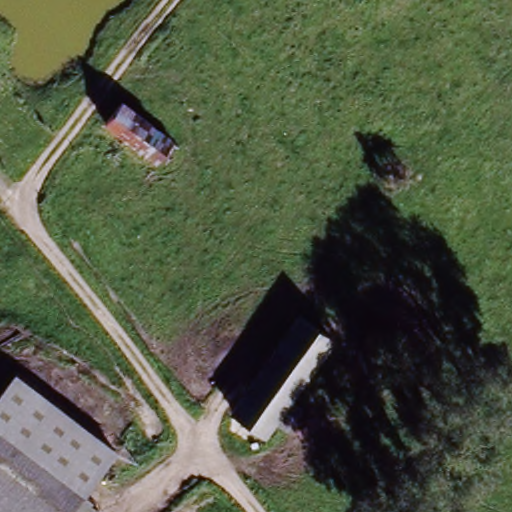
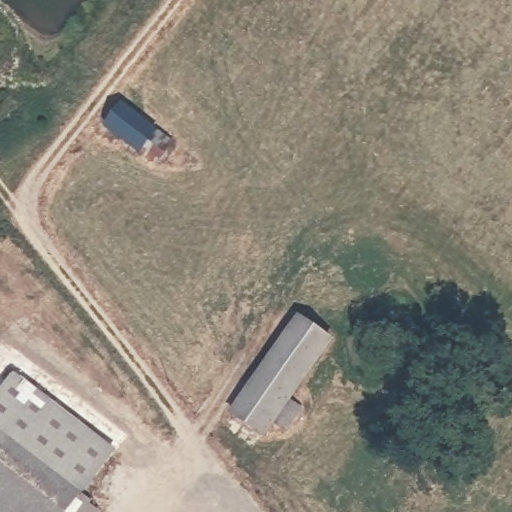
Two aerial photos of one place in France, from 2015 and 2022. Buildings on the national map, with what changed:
unchanged [(110,85),(155,129),(150,135),(169,153),(147,177),(127,158),(134,151),(88,109),(110,85)]
unchanged [(229,414),(298,317),(331,341),(288,401),(298,410),(280,432),(271,425),(260,440),(229,414)]
unchanged [(115,451),(84,495),(97,506),(93,512),(0,512),(0,391),(14,372),(115,451)]

